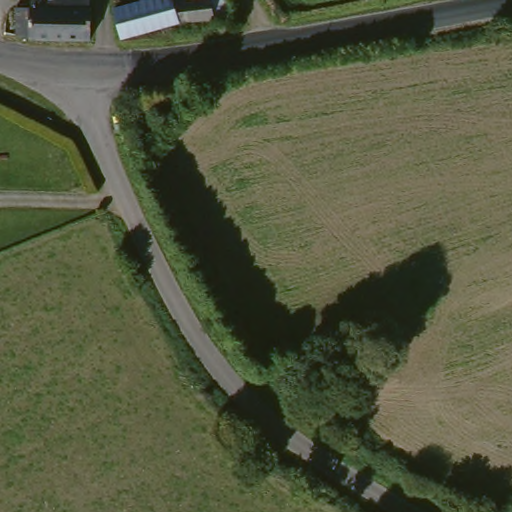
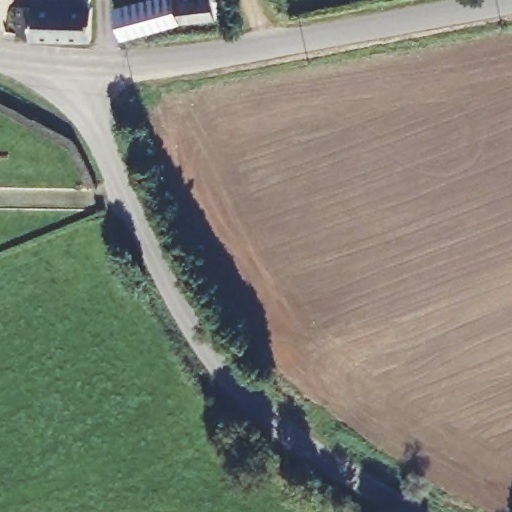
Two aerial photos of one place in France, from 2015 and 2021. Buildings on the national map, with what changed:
unchanged [(88,36),(87,36),(25,32),(17,30),(17,4),(31,5),(31,0),(87,0),(88,36)]
unchanged [(136,0),(208,0),(211,12),(209,12),(170,22),(134,30),(119,34),(113,5),(136,0)]

